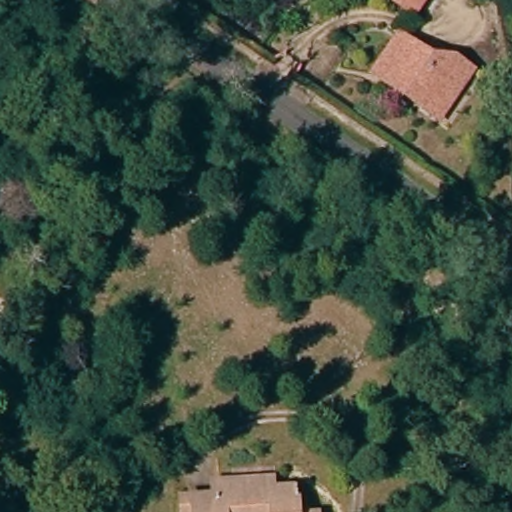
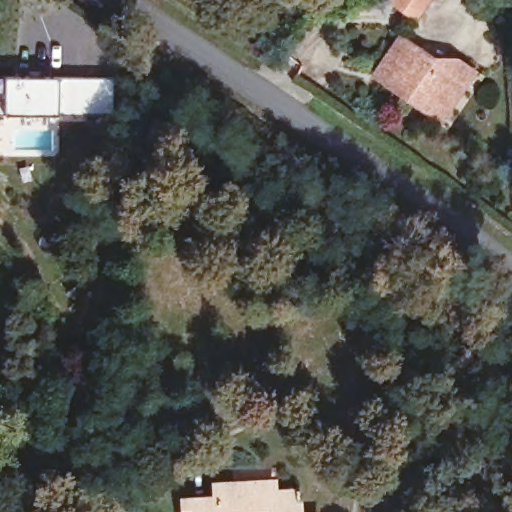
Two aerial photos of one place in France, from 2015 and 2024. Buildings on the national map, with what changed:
unchanged [(428,0),(417,14),(397,0),(428,0)]
unchanged [(374,78),(382,67),(404,35),(465,78),(453,94),(457,97),(445,114),(427,102),(421,111),(374,78)]
new [(57,114),(5,113),(0,114),(0,78),(5,77),(59,78),(114,79),(113,113),(57,114)]
unchanged [(325,512),(187,512),(187,497),(220,496),(219,480),(226,480),(260,479),(280,479),(280,489),(302,488),(302,511),(325,510),(325,512)]

